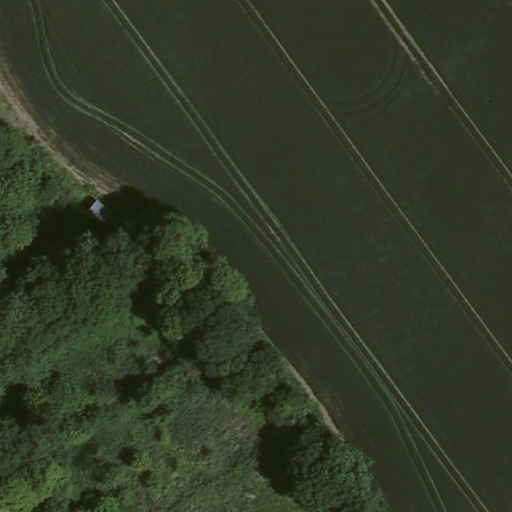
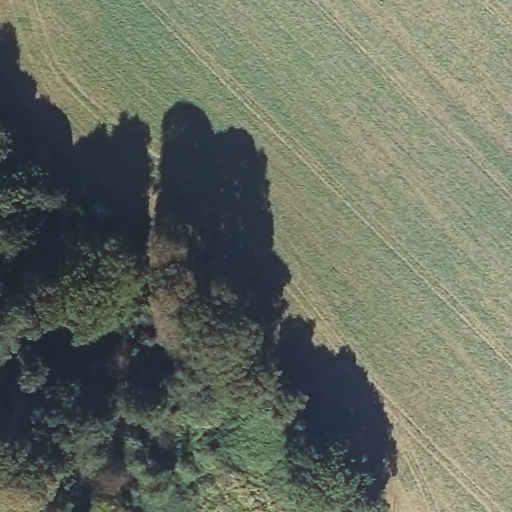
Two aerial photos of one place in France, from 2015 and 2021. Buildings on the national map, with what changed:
unchanged [(69,407),(30,431),(21,421),(54,389),(69,407)]

